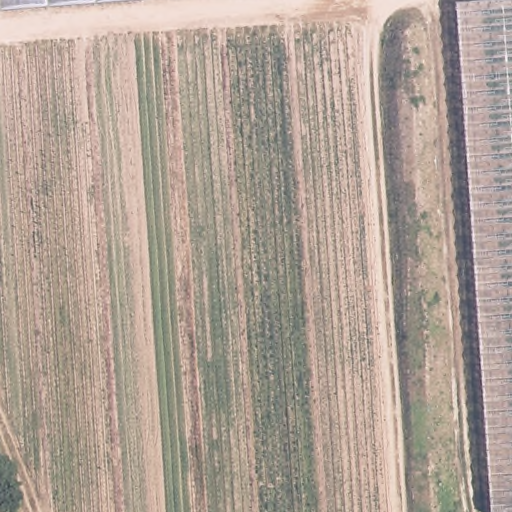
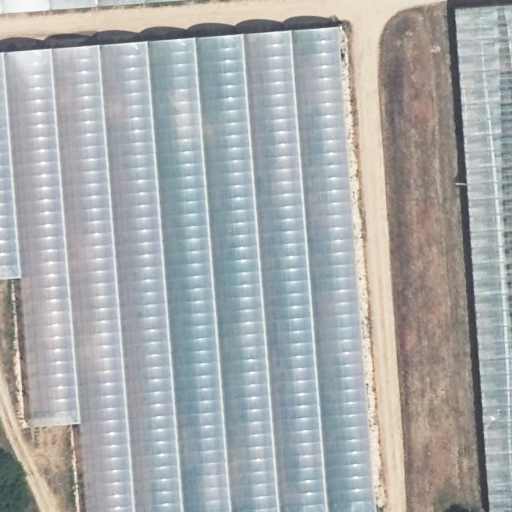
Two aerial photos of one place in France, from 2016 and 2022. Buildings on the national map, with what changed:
unchanged [(0,13),(0,0),(178,0),(0,13)]
unchanged [(512,485),(488,486),(466,64),(464,13),(512,7),(512,485)]
new [(28,427),(17,278),(0,279),(0,51),(334,25),(375,512),(83,512),(76,423),(28,427)]
unchanged [(488,486),(481,486),(466,64),(488,486)]

